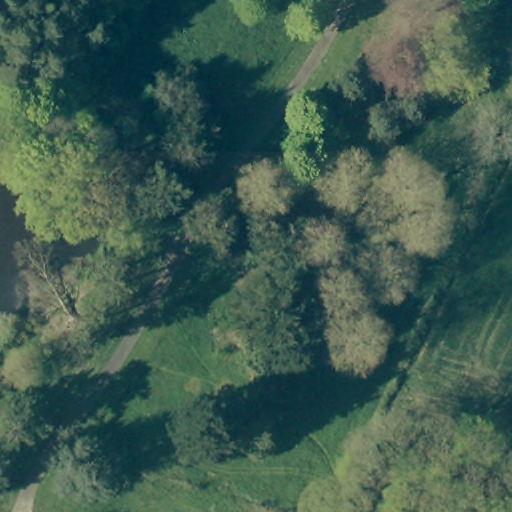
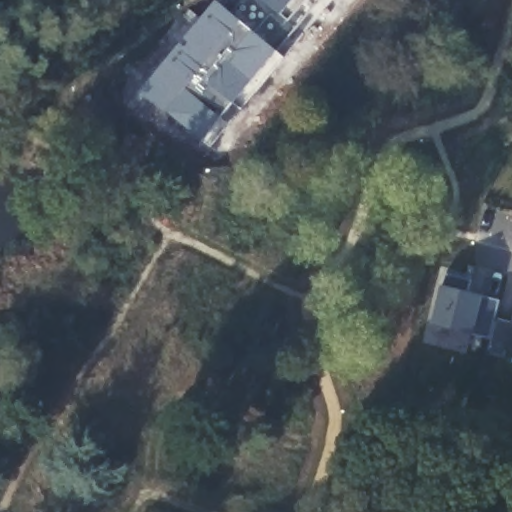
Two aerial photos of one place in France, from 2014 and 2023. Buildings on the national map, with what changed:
new [(189,51),(193,46),(188,42),(221,4),(234,15),(246,0),(312,0),(292,24),(300,30),(205,144),(145,94),(184,47),(189,51)]
new [(507,360),(488,356),(491,340),(473,335),(431,326),(442,285),(444,274),(470,281),(468,292),(501,302),(497,319),(512,324),(512,353),(509,352),(507,360)]

